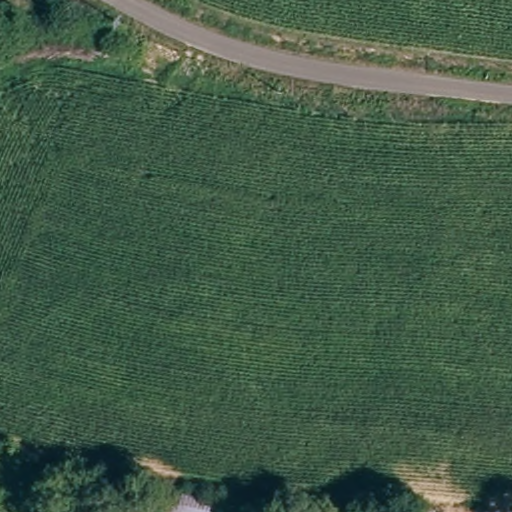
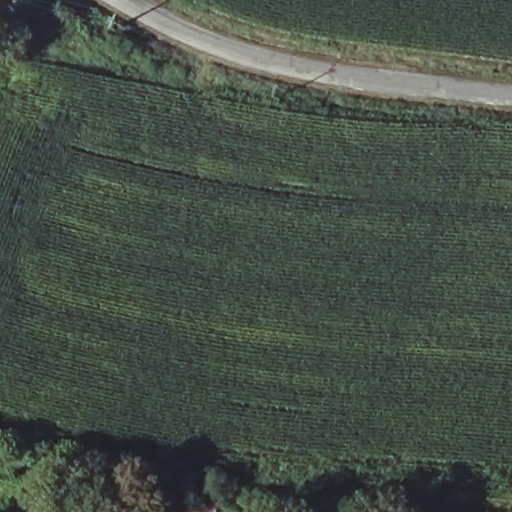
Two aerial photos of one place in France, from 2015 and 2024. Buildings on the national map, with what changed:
unchanged [(222,499),(219,512),(165,512),(169,492),(222,499)]

